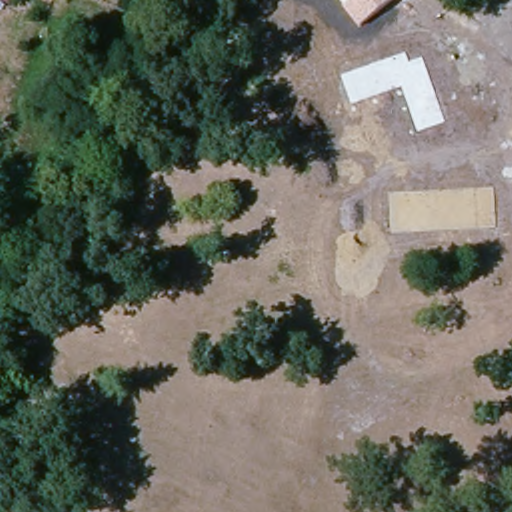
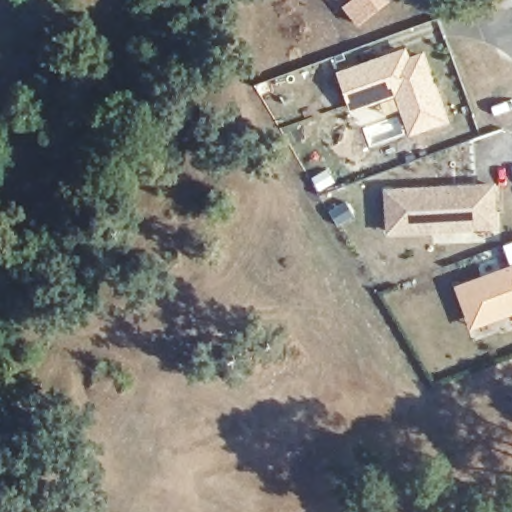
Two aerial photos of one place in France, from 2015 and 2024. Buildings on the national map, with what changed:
unchanged [(6,0),(11,0),(10,3),(6,0)]
unchanged [(344,9),(355,0),(396,0),(358,28),(344,9)]
new [(411,137),(397,98),(351,113),(338,73),(408,49),(412,58),(425,54),(449,123),(411,137)]
new [(488,185),(491,225),(385,231),(383,192),(488,185)]
new [(473,330),(456,287),(512,266),(512,315),(473,330)]

